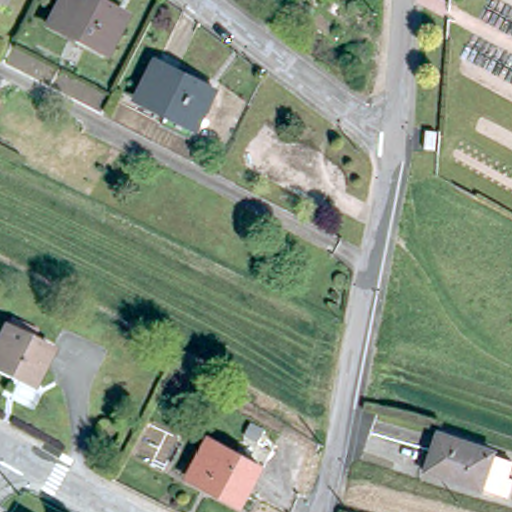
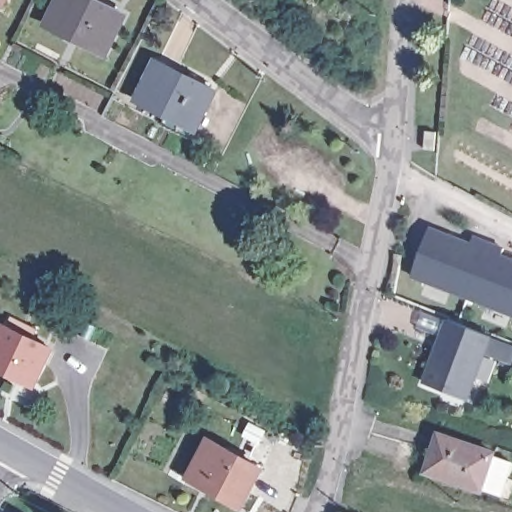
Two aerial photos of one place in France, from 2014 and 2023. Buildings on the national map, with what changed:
unchanged [(0,1),(0,0),(2,0),(1,2),(0,1)]
unchanged [(107,49),(50,20),(59,0),(106,0),(126,10),(107,49)]
unchanged [(213,91),(193,129),(136,100),(155,62),(213,91)]
unchanged [(0,77),(0,74),(1,75),(0,77)]
unchanged [(431,119),(429,132),(418,131),(420,117),(431,119)]
new [(512,257),(512,315),(411,277),(431,227),(472,242),(475,234),(506,247),(504,254),(512,257)]
new [(493,337),(468,400),(422,382),(446,318),(493,337)]
unchanged [(35,385),(13,375),(10,380),(0,375),(0,332),(1,329),(51,353),(35,385)]
unchanged [(505,495),(485,487),(484,492),(429,473),(442,433),(497,452),(512,457),(512,473),(505,495)]
unchanged [(260,465),(240,502),(205,482),(207,478),(190,467),(207,435),(260,465)]

